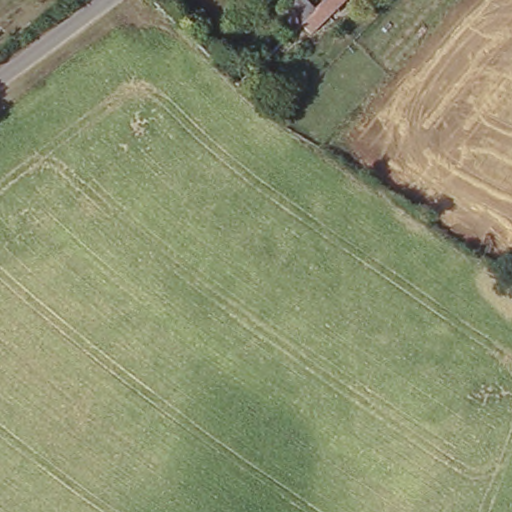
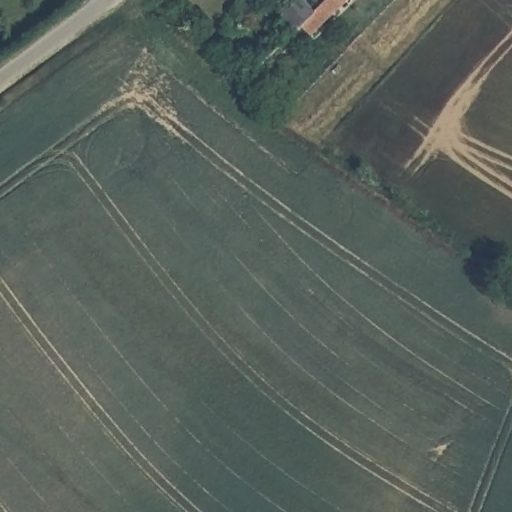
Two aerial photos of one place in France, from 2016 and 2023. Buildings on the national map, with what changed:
unchanged [(317,17),(336,0),(352,0),(327,26),(317,17)]

